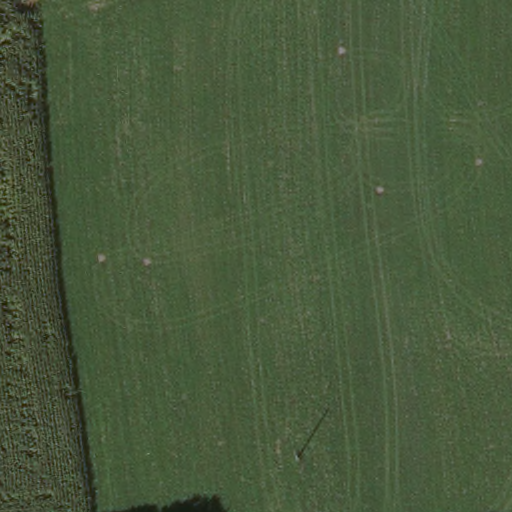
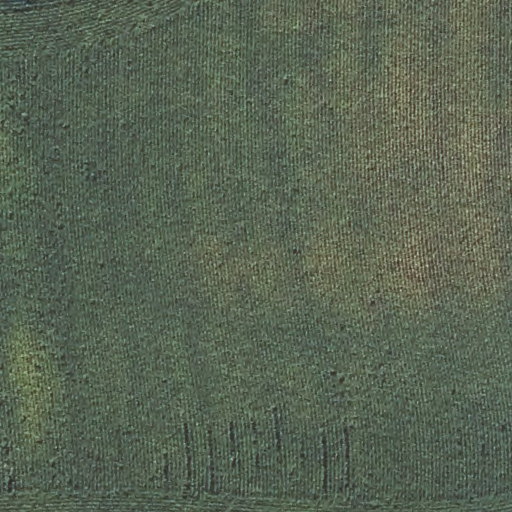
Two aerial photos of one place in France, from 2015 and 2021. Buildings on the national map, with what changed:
[]

